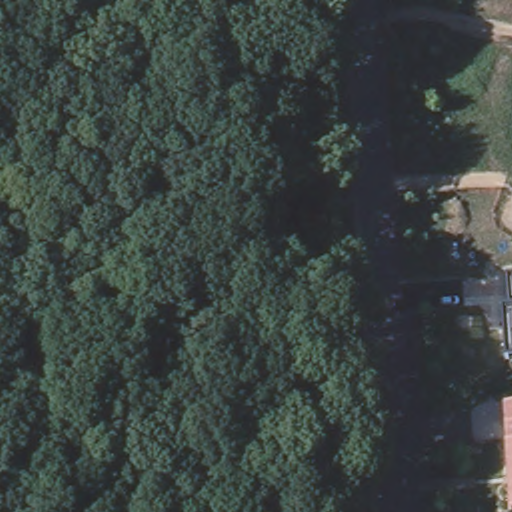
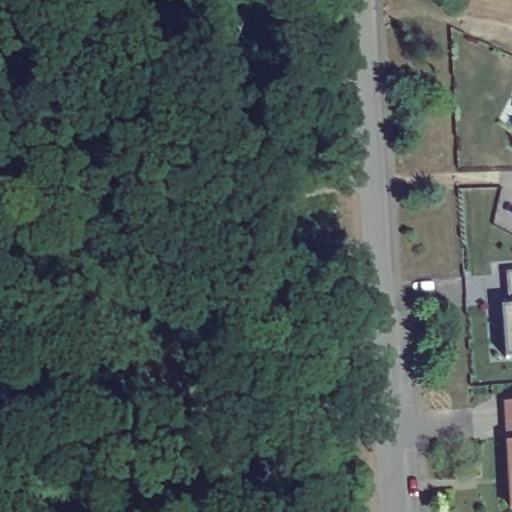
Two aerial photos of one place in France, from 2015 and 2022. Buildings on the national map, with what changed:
unchanged [(505,359),(502,306),(509,306),(508,275),(512,274),(512,358),(505,359)]
unchanged [(512,400),(512,458),(509,400),(512,400)]

